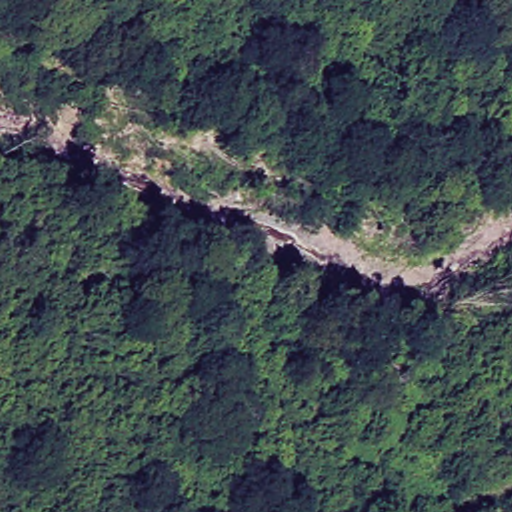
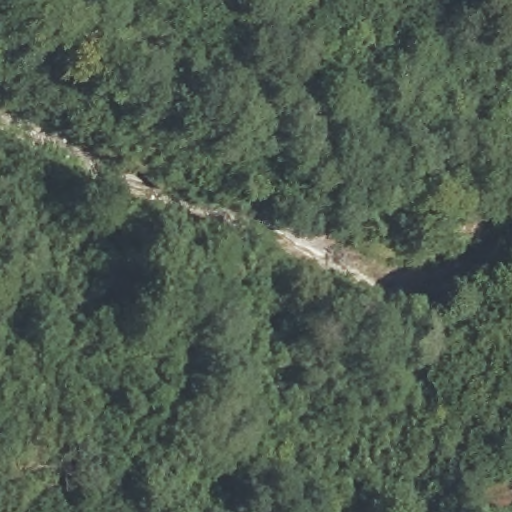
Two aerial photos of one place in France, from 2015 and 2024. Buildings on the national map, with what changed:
unchanged [(351,385),(386,370),(402,400),(361,415),(351,385)]

